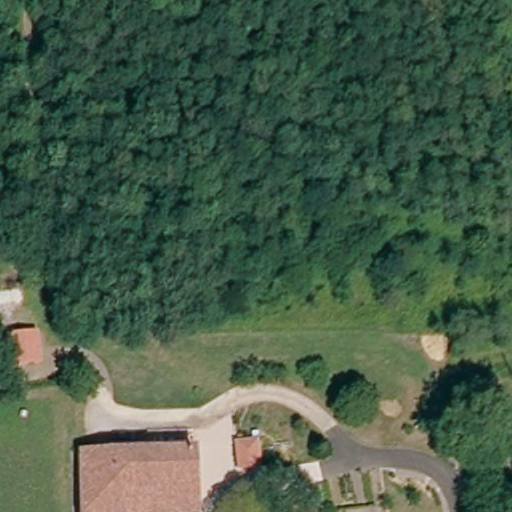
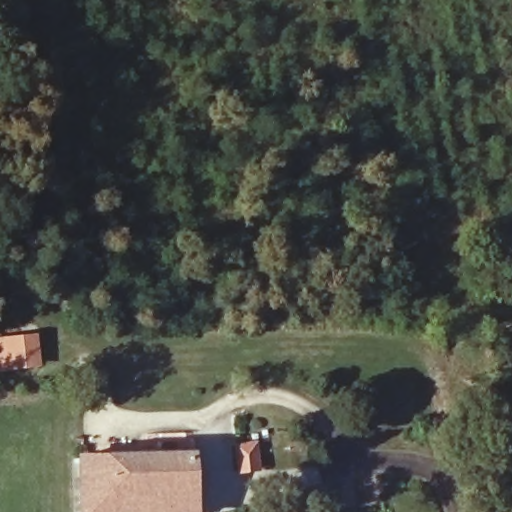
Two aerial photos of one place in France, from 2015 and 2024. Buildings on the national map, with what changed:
unchanged [(30,332),(30,357),(12,357),(12,332),(30,332)]
unchanged [(78,452),(193,453),(193,512),(79,512),(78,452)]
unchanged [(248,472),(237,473),(229,473),(228,452),(246,452),(248,472)]

